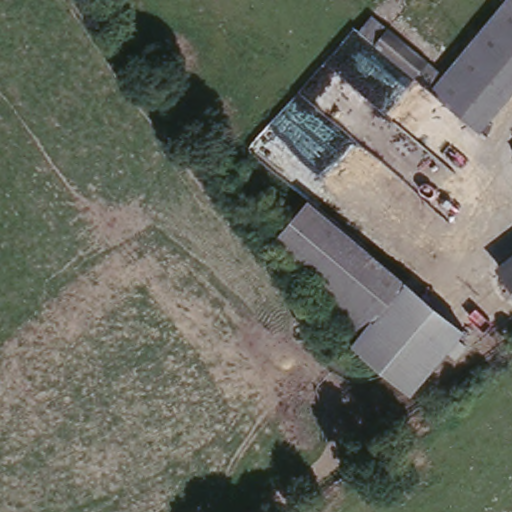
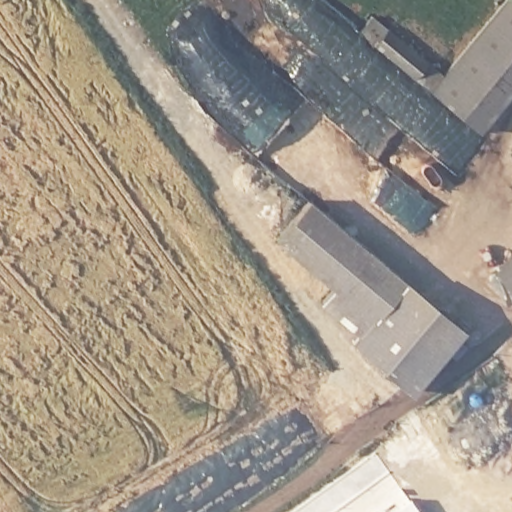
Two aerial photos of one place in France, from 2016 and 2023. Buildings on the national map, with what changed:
unchanged [(386,26),(444,68),(501,0),(512,0),(512,94),(481,132),(367,50),(386,26)]
unchanged [(318,300),(330,284),(272,237),(308,193),(414,279),(364,338),(318,300)]
unchanged [(505,258),(512,253),(512,291),(493,269),(505,258)]
unchanged [(469,323),(417,387),(360,344),(364,338),(414,279),(469,323)]
new [(292,512),(374,453),(417,512),(292,512)]

